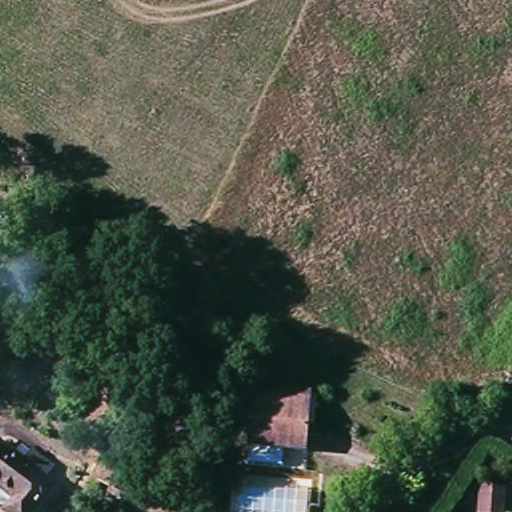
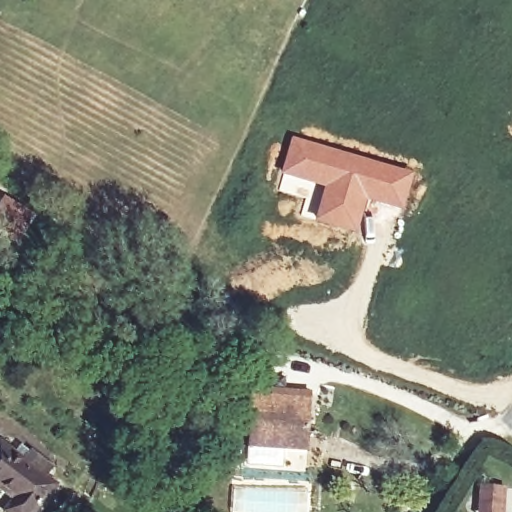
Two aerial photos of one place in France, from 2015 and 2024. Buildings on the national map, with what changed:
new [(292,136),(378,162),(415,171),(403,211),(368,200),(357,232),(314,220),(323,188),(280,174),(292,136)]
unchanged [(267,396),(314,404),(305,452),(258,443),(267,396)]
unchanged [(2,426),(60,462),(37,500),(19,490),(22,485),(0,471),(0,430),(2,426)]
unchanged [(37,500),(60,462),(72,467),(43,512),(34,512),(0,491),(0,471),(22,485),(19,490),(37,500)]
unchanged [(507,485),(506,512),(480,512),(481,485),(507,485)]
demolished [(308,494),(308,512),(233,512),(233,488),(308,494)]

